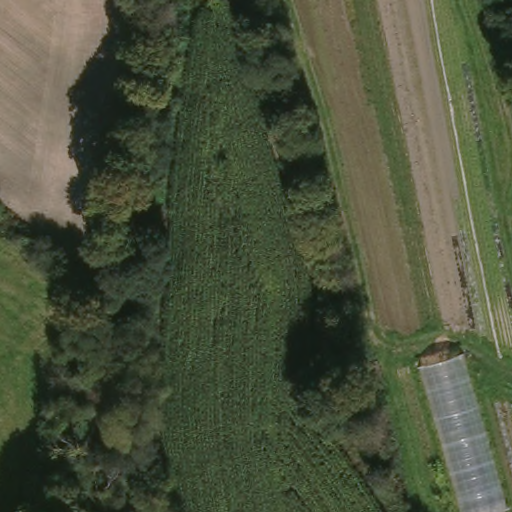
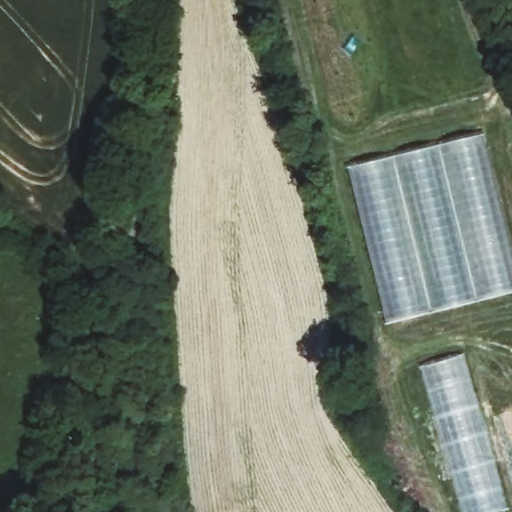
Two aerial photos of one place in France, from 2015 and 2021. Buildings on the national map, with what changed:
new [(512,249),(512,294),(387,325),(346,170),(483,135),(512,249)]
unchanged [(426,366),(461,355),(506,510),(497,512),(467,512),(426,366)]

